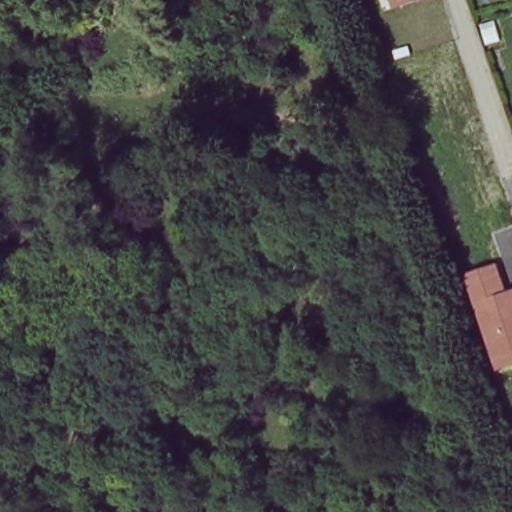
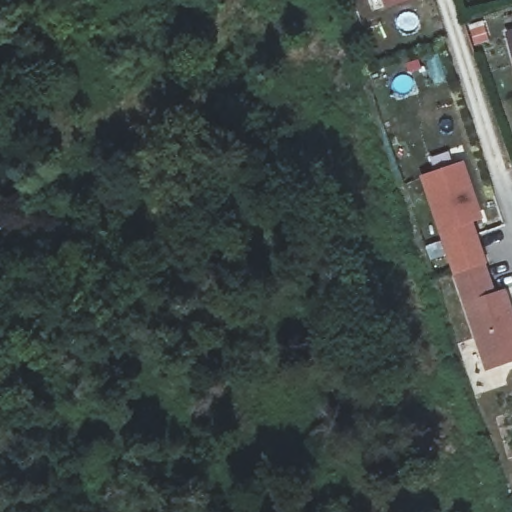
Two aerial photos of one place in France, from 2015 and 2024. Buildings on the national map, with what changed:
unchanged [(387,9),(383,0),(414,0),(387,9)]
unchanged [(512,35),(512,62),(504,37),(512,35)]
new [(420,175),(464,161),(482,219),(472,221),(486,263),(454,275),(420,175)]
unchanged [(497,292),(507,289),(512,303),(512,363),(487,371),(454,275),(486,263),(497,292)]

